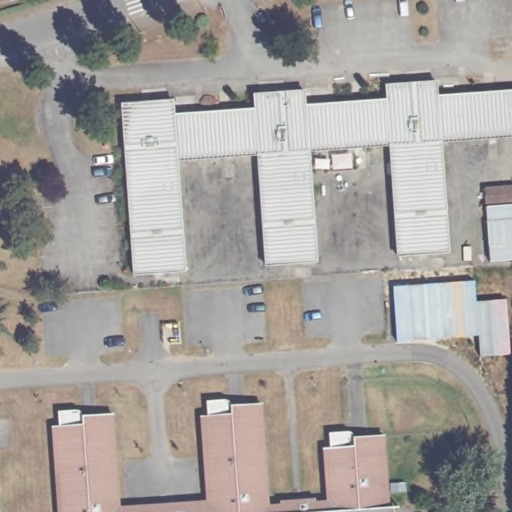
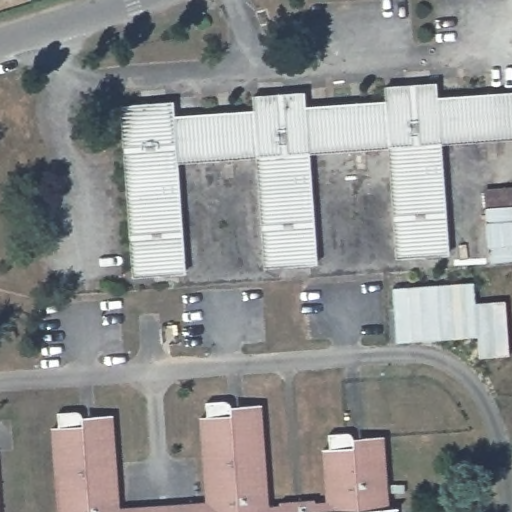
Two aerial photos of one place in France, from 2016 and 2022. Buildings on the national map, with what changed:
unchanged [(483,140),(441,142),(449,255),(398,257),(390,147),(309,152),(317,263),(267,267),(258,156),(209,159),(176,161),(181,236),(184,272),(134,276),(123,106),(172,102),(174,117),(255,111),(254,96),(304,92),(306,107),(387,101),(386,87),(436,83),(438,99),(512,93),(512,138),(483,140)]
unchanged [(481,186),(508,185),(511,206),(512,206),(512,262),(489,261),(481,186)]
unchanged [(60,422),(58,408),(76,407),(81,408),(83,412),(84,421),(93,421),(92,412),(112,410),(120,504),(209,497),(206,461),(202,412),(208,412),(207,397),(224,396),(229,397),(231,402),(232,411),(241,410),(240,402),(261,400),(268,502),(281,501),(280,498),(315,495),(316,498),(329,497),(326,464),(326,461),(324,445),(331,443),(330,430),(347,427),(352,430),(354,433),(354,442),(364,442),(363,433),(384,432),(386,462),(389,504),(394,503),(395,512),(60,512),(53,423),(60,422)]

